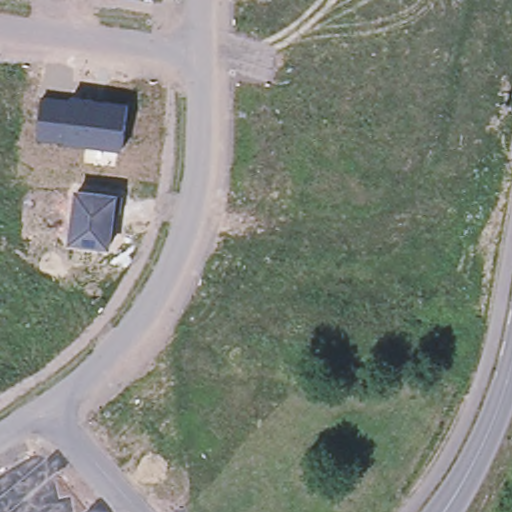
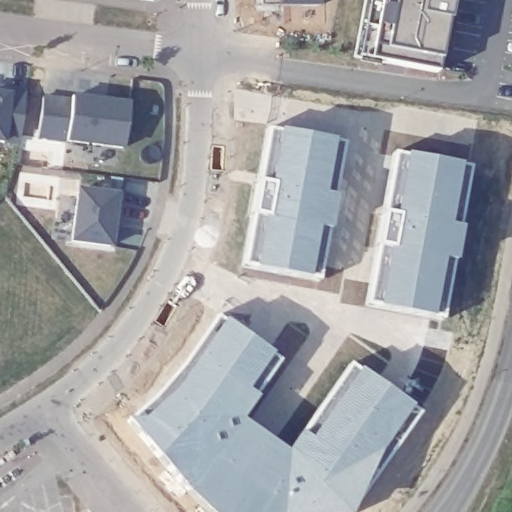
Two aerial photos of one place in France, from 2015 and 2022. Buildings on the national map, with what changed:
unchanged [(448,0),(447,5),(449,5),(446,21),(439,20),(435,30),(439,33),(433,70),(351,58),(362,0),(448,0)]
unchanged [(18,142),(0,141),(0,86),(24,90),(18,142)]
unchanged [(73,96),(73,93),(129,101),(124,150),(36,139),(41,93),(73,96)]
new [(264,130),(342,144),(317,281),(239,268),(264,130)]
new [(391,154),(469,167),(441,320),(364,306),(391,154)]
unchanged [(119,192),(113,248),(68,242),(75,185),(119,192)]
new [(151,399),(179,367),(214,316),(279,361),(237,421),(285,455),(348,364),(419,413),(351,512),(284,512),(210,512),(176,481),(125,422),(151,399)]

